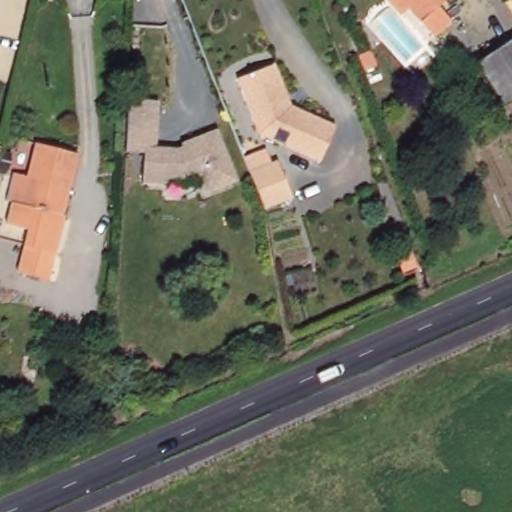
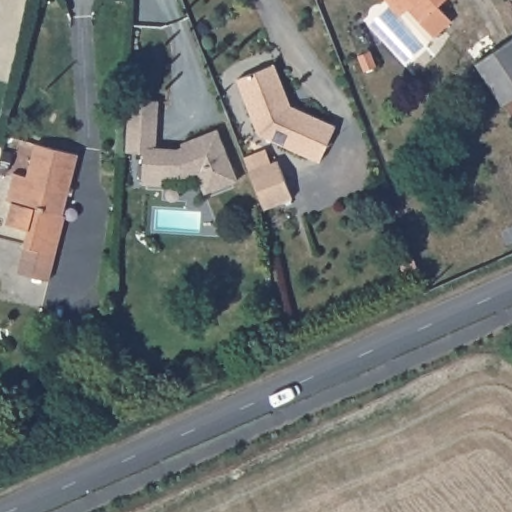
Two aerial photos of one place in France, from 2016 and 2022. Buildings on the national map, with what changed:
unchanged [(389,0),(446,0),(437,8),(450,23),(434,38),(408,10),(403,15),(389,0)]
unchanged [(512,41),(512,102),(505,106),(476,64),(512,41)]
unchanged [(371,54),(378,69),(366,74),(360,59),(371,54)]
unchanged [(275,66),(290,108),(335,128),(318,165),(257,138),(236,83),(275,66)]
unchanged [(160,102),(157,149),(181,148),(180,144),(216,131),(237,185),(203,198),(195,177),(142,184),(143,156),(125,156),(129,101),(160,102)]
unchanged [(28,176),(36,143),(77,153),(62,214),(64,215),(51,281),(19,277),(29,230),(7,225),(12,202),(6,201),(12,173),(28,176)]

